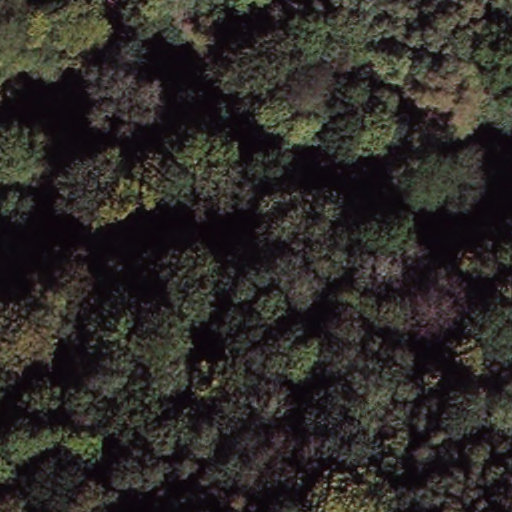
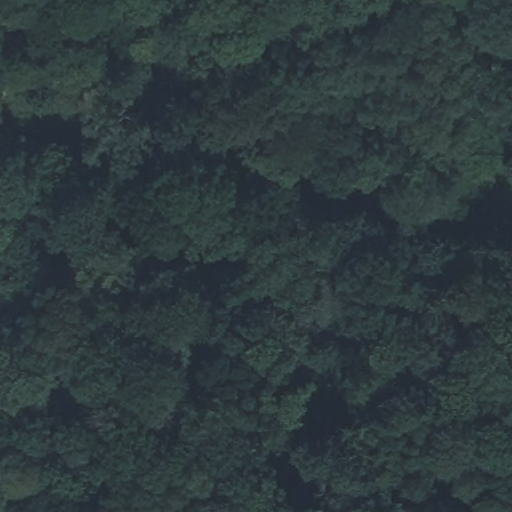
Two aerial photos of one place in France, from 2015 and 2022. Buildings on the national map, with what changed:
[]

